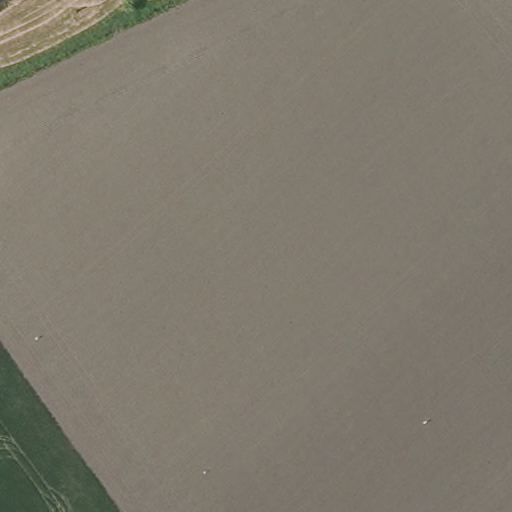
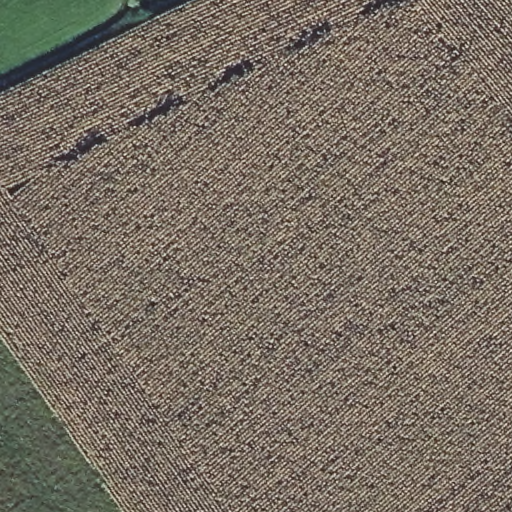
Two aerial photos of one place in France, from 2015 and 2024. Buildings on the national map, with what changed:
[]

